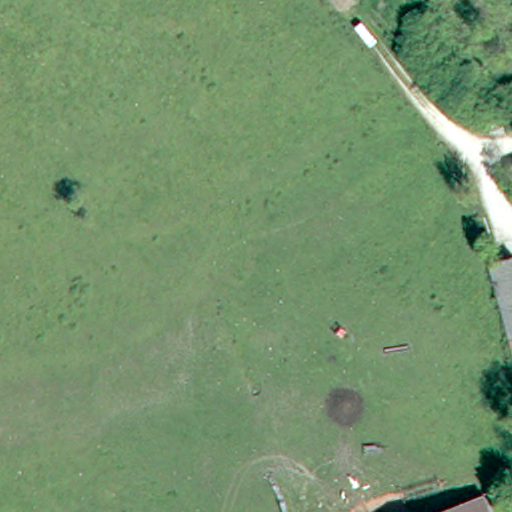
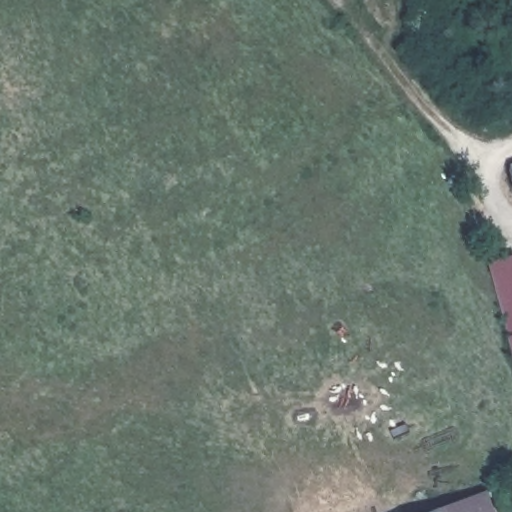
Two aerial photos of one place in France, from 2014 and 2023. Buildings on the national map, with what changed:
unchanged [(512,164),(512,169),(511,165),(512,164)]
unchanged [(512,253),(512,338),(490,261),(512,253)]
unchanged [(494,512),(455,512),(452,500),(487,489),(494,512)]
unchanged [(452,500),(455,512),(414,512),(452,500)]

